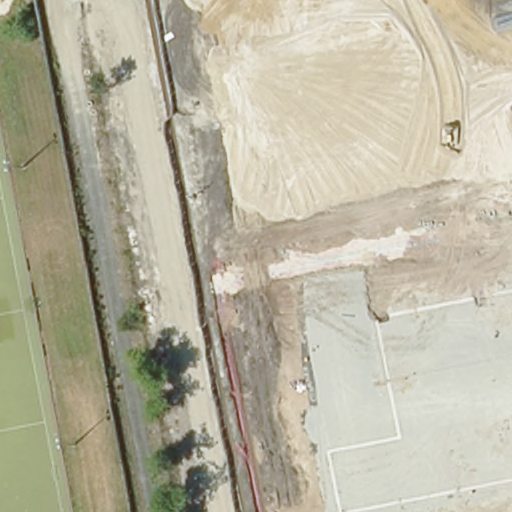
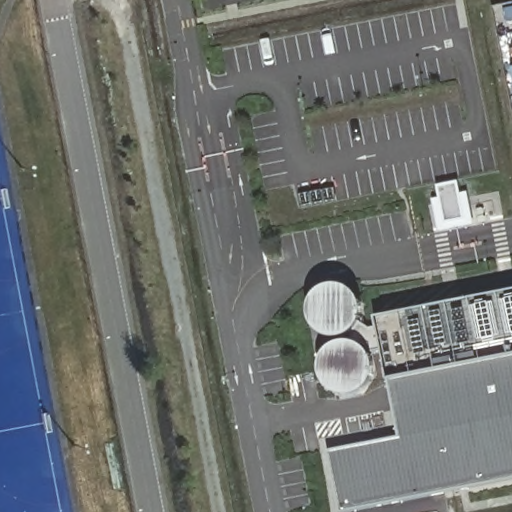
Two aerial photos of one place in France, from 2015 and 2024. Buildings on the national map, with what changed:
new [(439,189),(458,186),(460,194),(469,192),(475,226),(439,233),(432,200),(441,198),(439,189)]
new [(349,512),(338,512),(327,451),(399,438),(383,352),(371,354),(367,349),(359,344),(353,343),(351,336),(356,331),(361,324),(370,329),(379,328),(377,317),(512,290),(512,480),(349,512)]

